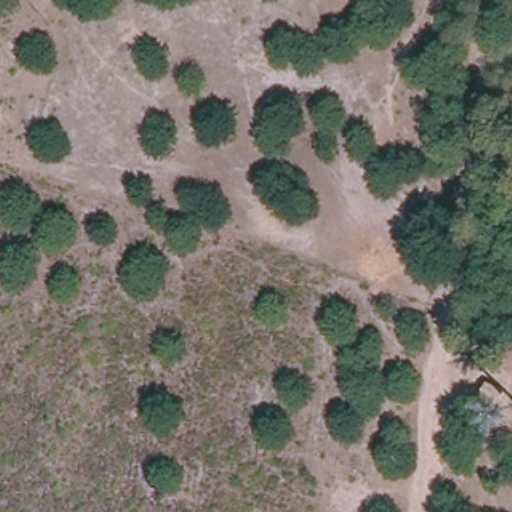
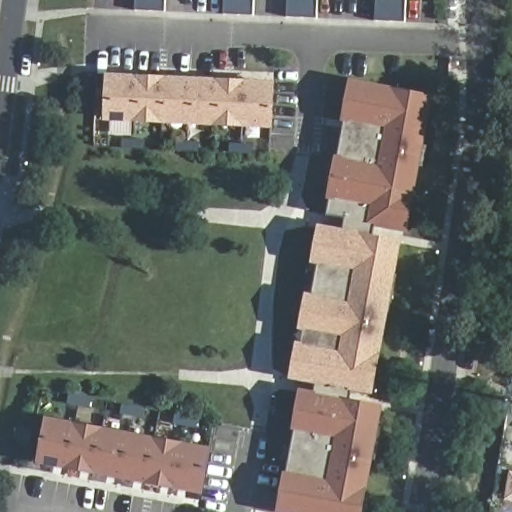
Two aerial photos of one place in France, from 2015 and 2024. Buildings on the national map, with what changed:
new [(136,0),(167,0),(166,12),(136,11),(136,0)]
new [(225,0),(255,0),(255,16),(224,15),(225,0)]
new [(288,0),(319,0),(317,18),(287,17),(288,0)]
new [(377,0),(407,0),(406,22),(376,21),(377,0)]
new [(272,128),(105,121),(108,73),(275,81),(272,128)]
new [(407,233),(375,227),(373,234),(343,229),(345,218),(325,214),(350,79),(433,95),(407,233)]
new [(373,395),(352,391),(320,385),(288,379),(320,224),(343,229),(373,234),(403,240),(373,395)]
new [(279,512),(302,389),(318,393),(320,385),(352,391),(351,399),(383,405),(363,512),(279,512)]
new [(202,494),(37,463),(45,417),(212,448),(202,494)]
new [(512,484),(512,493),(510,493),(512,484)]

